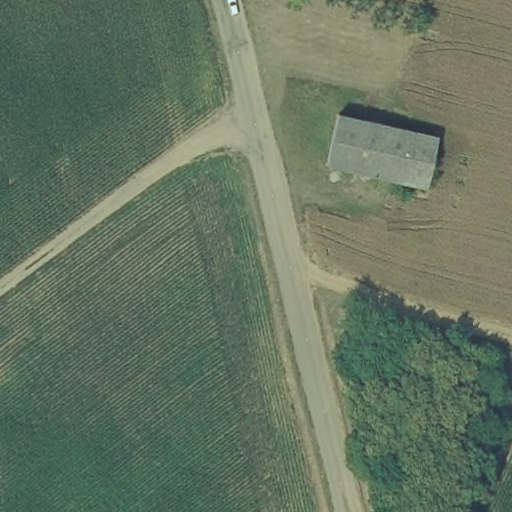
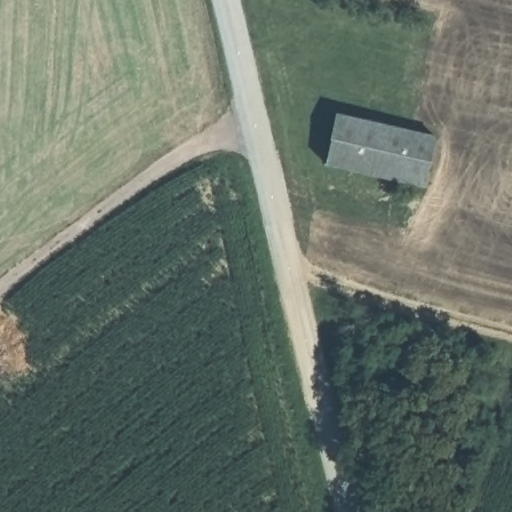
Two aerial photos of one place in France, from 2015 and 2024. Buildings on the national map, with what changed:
unchanged [(330,164),(340,115),(437,134),(427,184),(330,164)]

